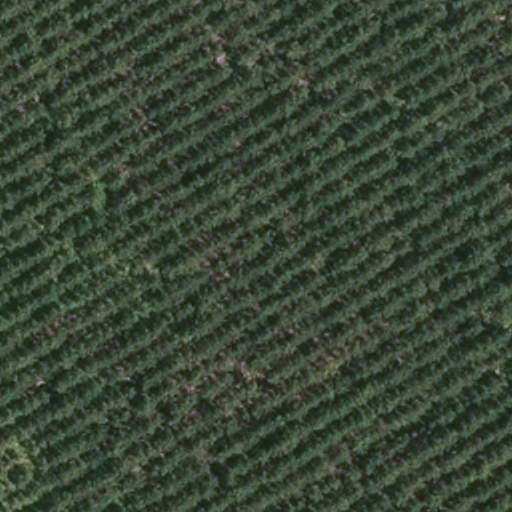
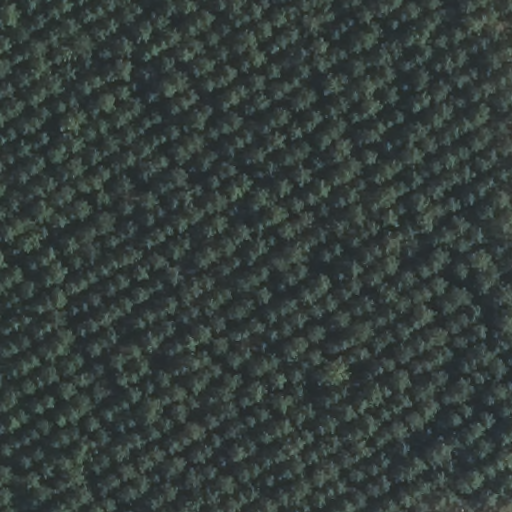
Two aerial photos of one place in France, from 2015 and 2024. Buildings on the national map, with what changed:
[]

